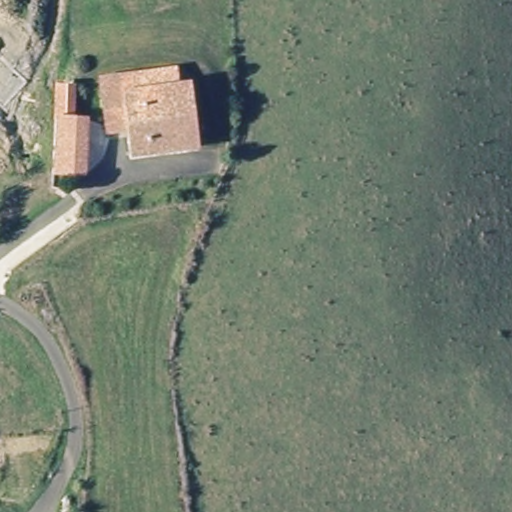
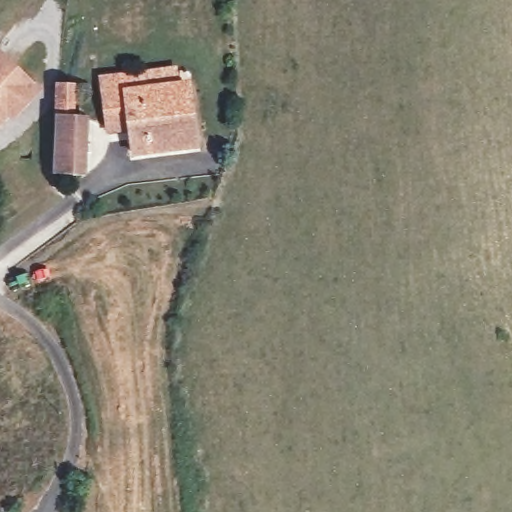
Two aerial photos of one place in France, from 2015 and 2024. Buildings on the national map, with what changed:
new [(14,122),(8,117),(0,126),(0,52),(42,90),(14,122)]
unchanged [(203,146),(140,159),(133,129),(115,134),(102,82),(132,77),(175,70),(178,86),(190,84),(203,146)]
unchanged [(90,170),(58,169),(59,110),(59,89),(78,86),(78,111),(92,112),(90,170)]

